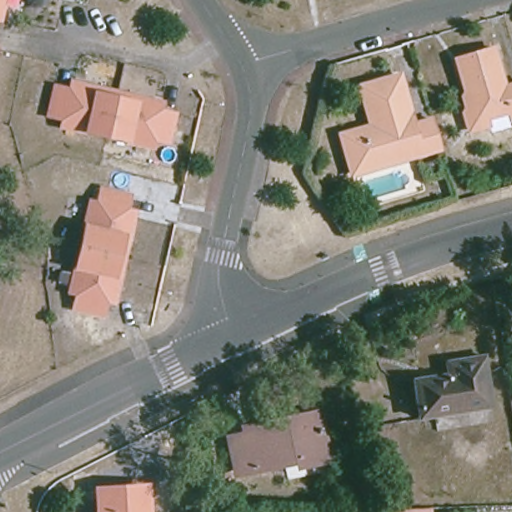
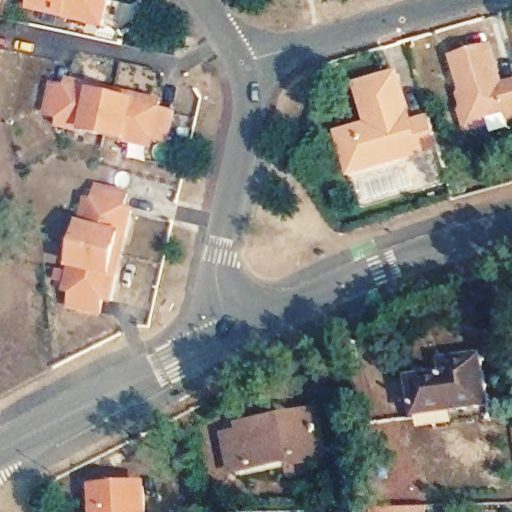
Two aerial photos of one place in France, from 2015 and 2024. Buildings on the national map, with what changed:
unchanged [(0,0),(6,0),(2,17),(0,17),(0,0)]
new [(34,0),(114,0),(114,1),(106,30),(31,11),(34,0)]
unchanged [(490,49),(502,88),(512,85),(512,119),(510,120),(507,112),(482,120),(484,127),(467,132),(461,114),(469,111),(453,60),(490,49)]
unchanged [(357,168),(346,130),(375,121),(364,82),(403,71),(418,121),(438,115),(446,143),(425,149),(392,158),(357,168)]
unchanged [(113,137),(97,134),(95,133),(69,127),(70,122),(71,118),(56,114),(62,85),(77,88),(79,80),(106,85),(124,89),(145,94),(169,99),(168,107),(176,109),(183,110),(177,140),(161,136),(160,142),(159,147),(134,142),(113,137)]
unchanged [(120,297),(113,295),(110,309),(80,302),(84,287),(78,286),(73,285),(79,259),(84,240),(85,235),(89,220),(95,194),(101,196),(105,197),(109,182),(138,189),(134,204),(142,206),(140,215),(136,231),(131,252),(126,271),(120,297)]
unchanged [(457,370),(495,365),(503,414),(429,426),(425,389),(459,383),(457,370)]
unchanged [(305,462),(304,457),(240,469),(234,436),(248,433),(247,426),(291,418),(321,413),(323,419),(328,457),(305,462)]
unchanged [(103,512),(101,488),(151,485),(152,512),(103,512)]
unchanged [(378,512),(379,509),(430,507),(429,512),(378,512)]

